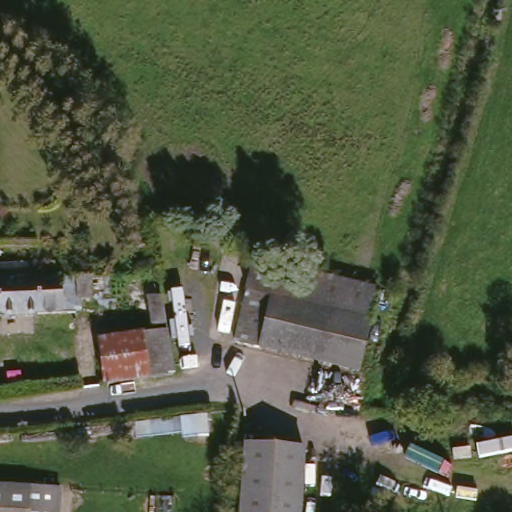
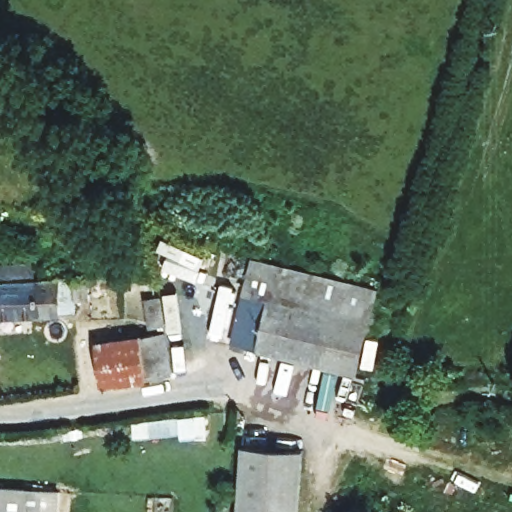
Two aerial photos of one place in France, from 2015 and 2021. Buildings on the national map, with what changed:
unchanged [(30,264),(30,280),(75,278),(77,305),(65,305),(65,318),(0,321),(0,266),(30,264)]
unchanged [(261,350),(236,346),(248,265),(273,269),(261,350)]
unchanged [(273,269),(377,284),(362,367),(261,350),(273,269)]
unchanged [(156,324),(140,324),(140,299),(156,298),(156,324)]
unchanged [(160,382),(92,388),(91,343),(158,337),(159,373),(160,382)]
unchanged [(300,448),(300,512),(237,512),(239,446),(300,448)]
unchanged [(60,512),(0,512),(0,491),(60,494),(60,512)]

